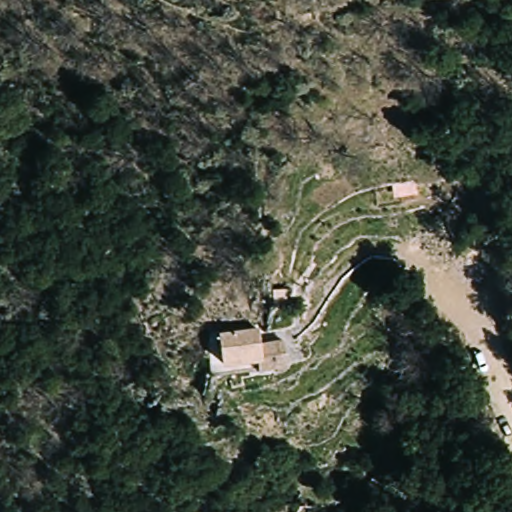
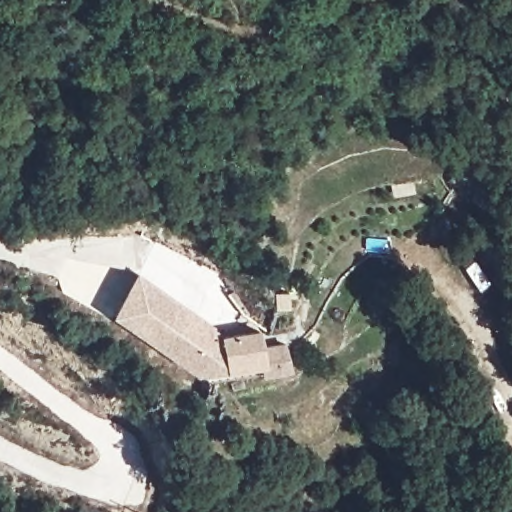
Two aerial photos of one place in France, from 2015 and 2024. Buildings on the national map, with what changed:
new [(160,347),(112,313),(139,274),(188,307),(215,325),(214,327),(222,332),(222,333),(219,333),(223,367),(194,371),(160,347)]
unchanged [(262,372),(261,363),(223,367),(219,333),(258,328),(259,342),(284,339),(290,368),(262,372)]

